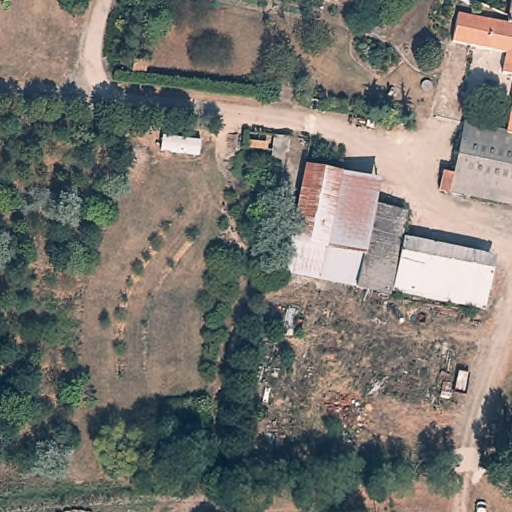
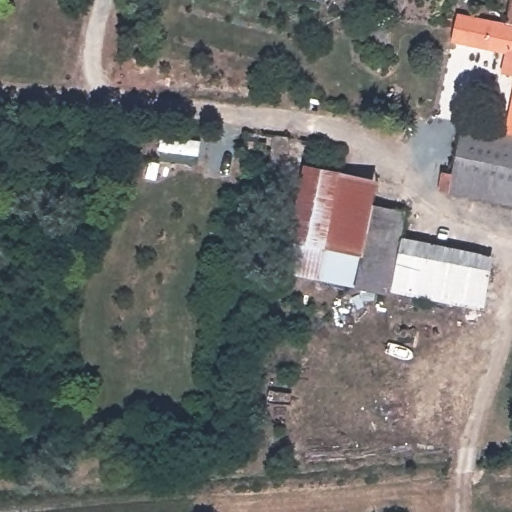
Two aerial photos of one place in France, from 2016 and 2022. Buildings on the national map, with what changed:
unchanged [(307,0),(329,0),(328,5),(307,0)]
unchanged [(511,0),(512,0),(512,74),(502,73),(503,52),(474,47),(478,18),(495,21),(509,23),(510,16),(511,0)]
unchanged [(455,192),(454,189),(447,187),(449,177),(457,178),(468,113),(500,119),(499,130),(509,131),(512,107),(512,202),(455,192)]
unchanged [(260,167),(268,134),(284,138),(282,145),(276,172),(260,167)]
unchanged [(488,312),(392,295),(284,275),(287,261),(305,168),(382,185),(380,197),(409,203),(401,243),(498,262),(488,312)]

